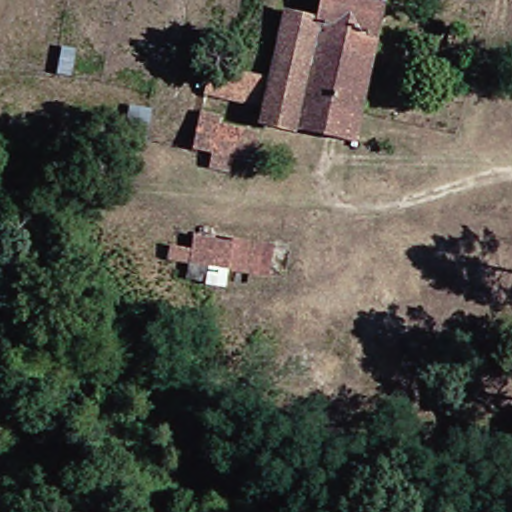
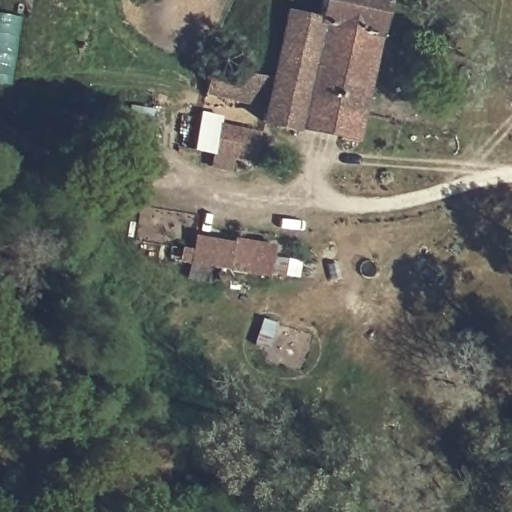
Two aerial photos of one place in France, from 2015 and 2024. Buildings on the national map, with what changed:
unchanged [(348,146),(252,127),(257,111),(203,101),(209,74),(258,83),(272,20),(301,25),(306,0),(377,0),(348,146)]
new [(22,18),(12,87),(0,84),(0,14),(22,18)]
unchanged [(192,114),(218,117),(217,130),(251,134),(247,172),(222,169),(207,168),(210,142),(187,139),(192,114)]
unchanged [(275,276),(263,274),(262,279),(222,275),(222,290),(197,290),(199,268),(157,265),(160,249),(183,250),(185,238),(277,248),(275,276)]

